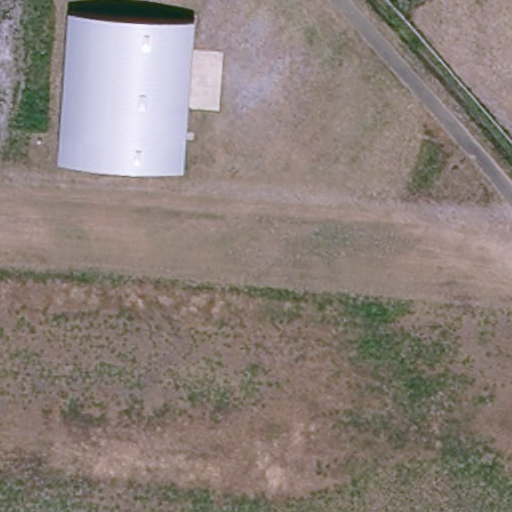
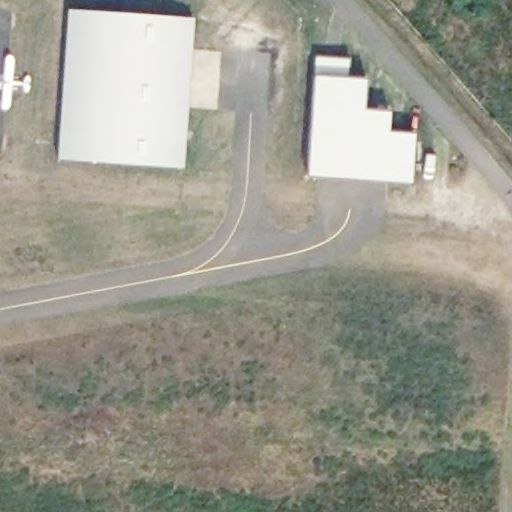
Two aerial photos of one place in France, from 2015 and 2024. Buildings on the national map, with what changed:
unchanged [(70,9),(195,20),(186,167),(60,158),(70,9)]
new [(315,55),(349,57),(347,76),(365,78),(363,108),(390,111),(388,131),(414,132),(411,184),(306,176),(313,73),(315,55)]

